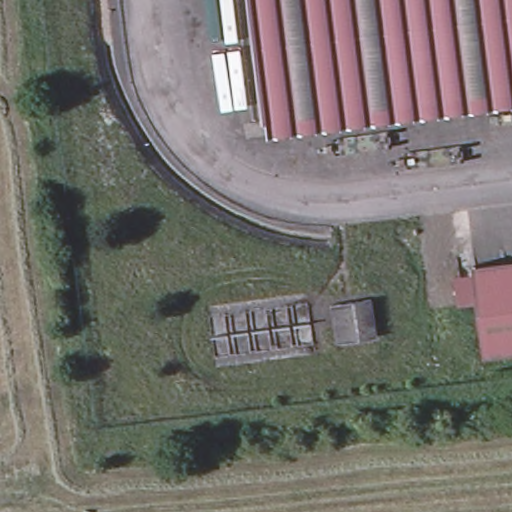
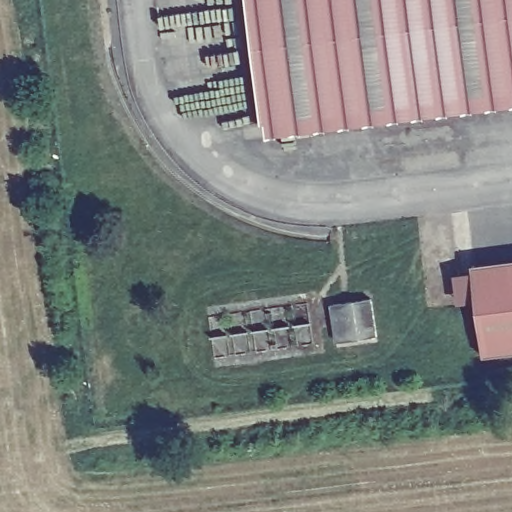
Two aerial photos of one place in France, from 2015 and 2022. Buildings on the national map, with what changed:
unchanged [(264,127),(248,0),(512,0),(512,96),(264,127)]
unchanged [(512,265),(512,356),(485,359),(473,270),(512,265)]
unchanged [(331,308),(340,307),(373,303),(378,341),(345,346),(336,347),(331,308)]

